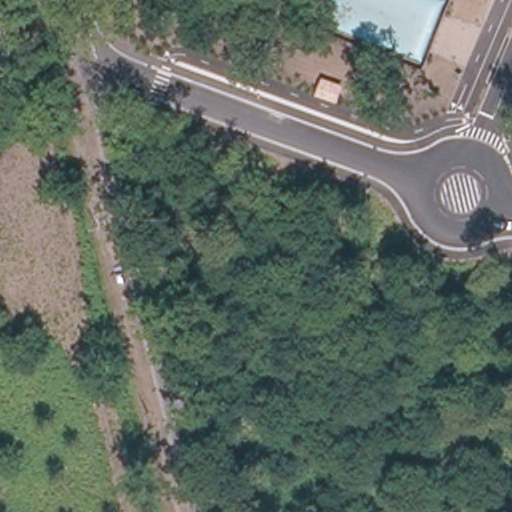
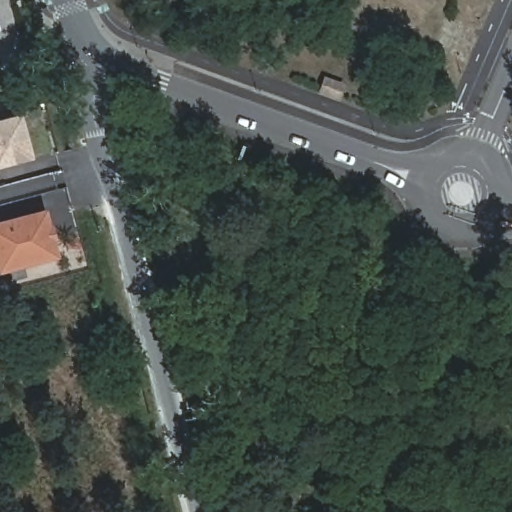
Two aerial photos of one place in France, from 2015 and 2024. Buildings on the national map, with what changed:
new [(0,169),(0,121),(20,115),(33,160),(0,169)]
new [(0,276),(0,223),(45,210),(59,259),(0,276)]

